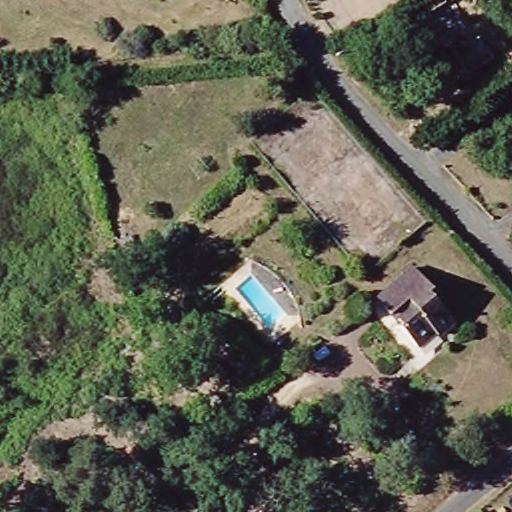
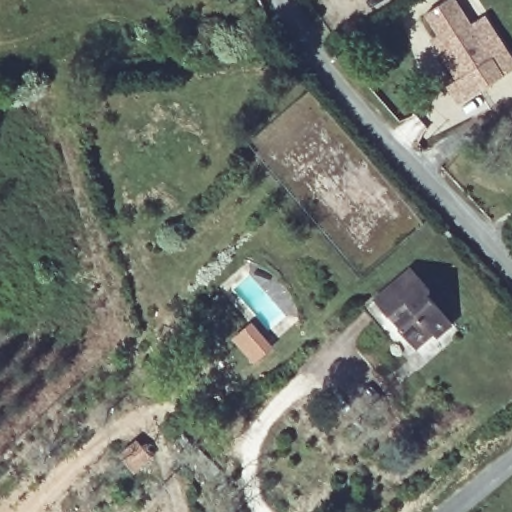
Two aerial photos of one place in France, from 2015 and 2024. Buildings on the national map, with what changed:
new [(443,0),(448,0),(468,26),(481,16),(491,31),(512,61),(512,67),(479,91),(457,104),(447,89),(456,81),(428,41),(435,36),(422,16),(443,0)]
unchanged [(427,293),(452,326),(435,339),(431,336),(418,346),(377,296),(415,264),(434,286),(427,293)]

